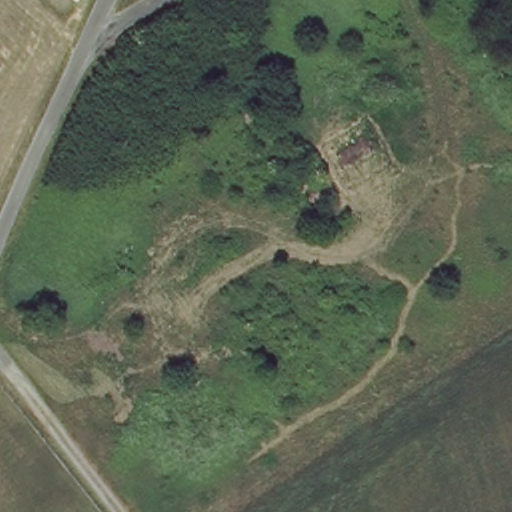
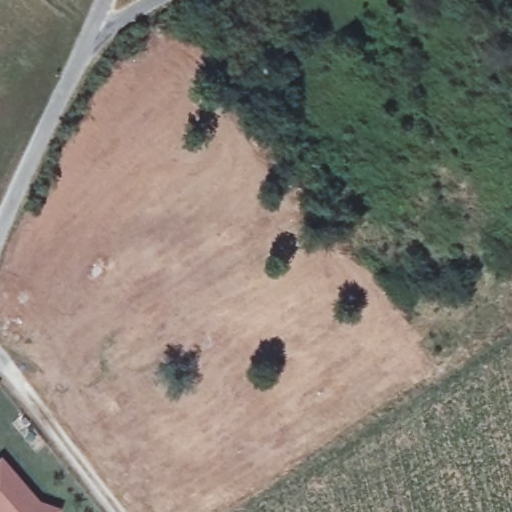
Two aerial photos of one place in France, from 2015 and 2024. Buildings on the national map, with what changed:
unchanged [(132,26),(144,41),(129,52),(117,38),(132,26)]
new [(0,512),(0,458),(0,457),(38,504),(60,510),(59,512),(0,512)]

